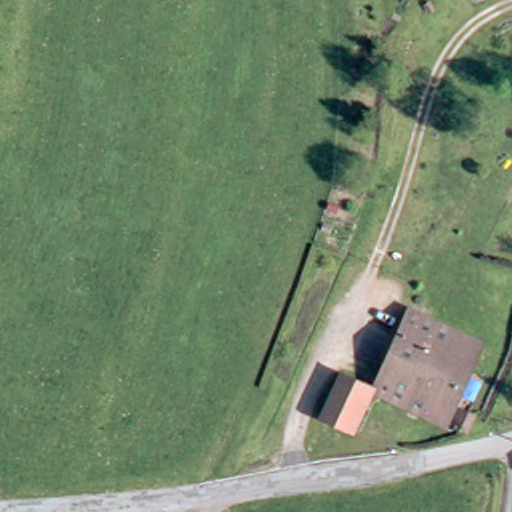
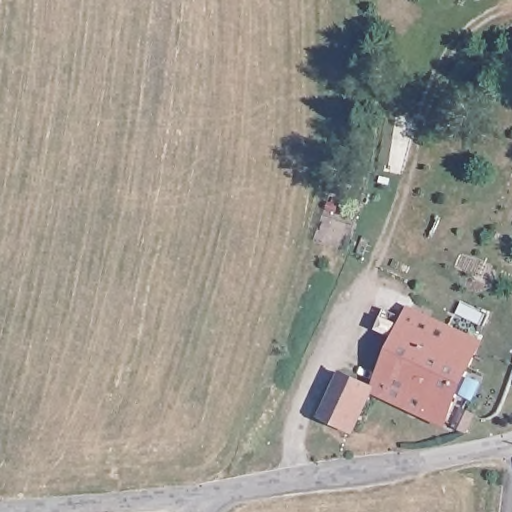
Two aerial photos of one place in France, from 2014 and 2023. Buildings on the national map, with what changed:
unchanged [(478,349),(438,421),(374,389),(416,314),(478,349)]
unchanged [(346,371),(368,384),(344,425),(321,411),(346,371)]
unchanged [(465,435),(450,427),(461,407),(476,415),(465,435)]

